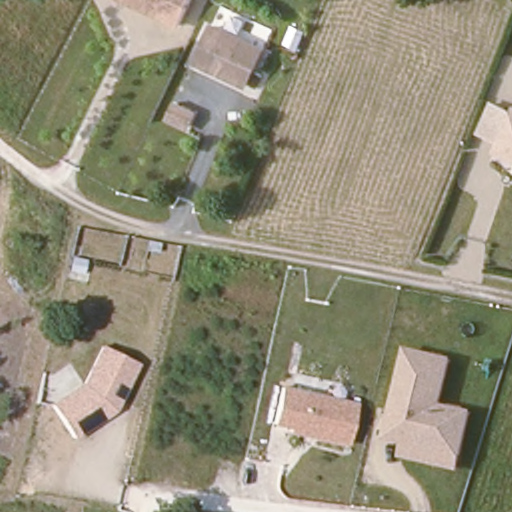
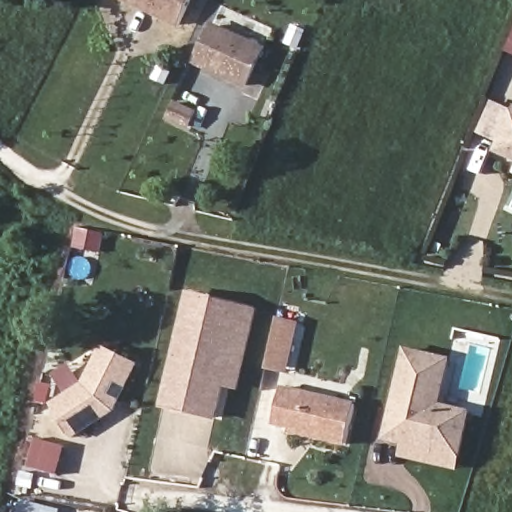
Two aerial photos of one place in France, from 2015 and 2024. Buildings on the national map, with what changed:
unchanged [(126,0),(192,0),(180,25),(126,0)]
unchanged [(225,77),(195,64),(214,26),(241,39),(225,77)]
unchanged [(265,50),(249,87),(225,77),(241,39),(265,50)]
unchanged [(195,115),(190,127),(169,117),(175,105),(195,115)]
unchanged [(491,156),(512,111),(512,163),(491,156)]
new [(187,291),(256,308),(236,390),(225,388),(216,422),(160,409),(187,291)]
unchanged [(72,440),(51,405),(82,384),(101,347),(139,365),(115,412),(72,440)]
unchanged [(385,442),(404,349),(452,360),(441,405),(473,411),(458,472),(398,460),(400,446),(385,442)]
unchanged [(285,388),(355,403),(344,445),(287,433),(289,429),(274,427),(285,388)]

